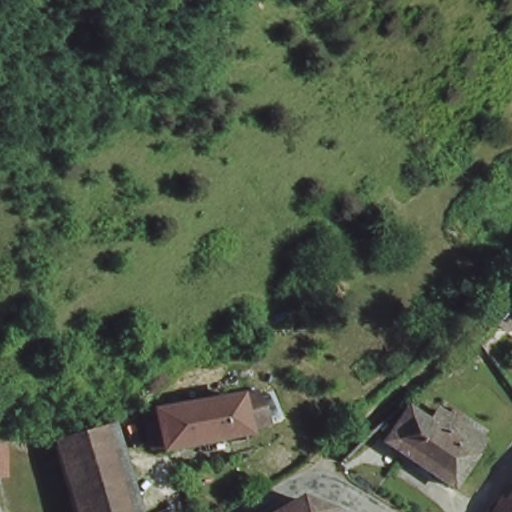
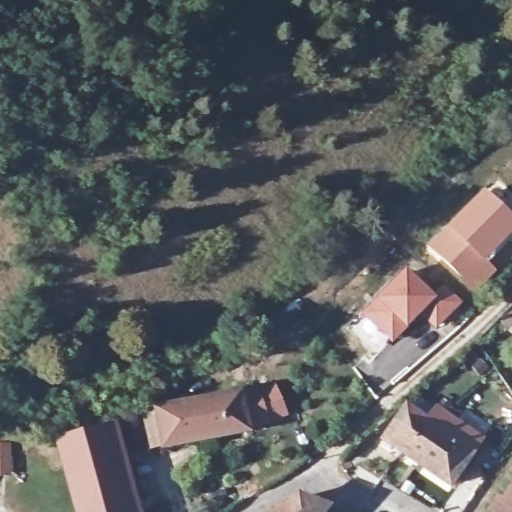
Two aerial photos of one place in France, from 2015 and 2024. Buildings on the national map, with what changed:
new [(485,191),(512,218),(512,235),(486,263),(446,226),(485,191)]
new [(446,226),(486,263),(496,271),(474,296),(424,246),(446,226)]
new [(443,284),(463,303),(434,330),(420,316),(389,345),(358,314),(406,269),(433,294),(443,284)]
unchanged [(503,333),(493,323),(512,305),(512,326),(503,333)]
unchanged [(253,428),(253,433),(168,450),(164,436),(153,439),(148,418),(261,396),(269,425),(253,428)]
unchanged [(449,491),(383,444),(403,415),(412,422),(418,415),(427,422),(434,414),(478,448),(449,491)]
unchanged [(61,444),(112,431),(132,512),(79,512),(61,444)]
unchanged [(512,485),(512,512),(496,512),(512,485)]
unchanged [(324,510),(322,512),(276,512),(296,500),(324,510)]

